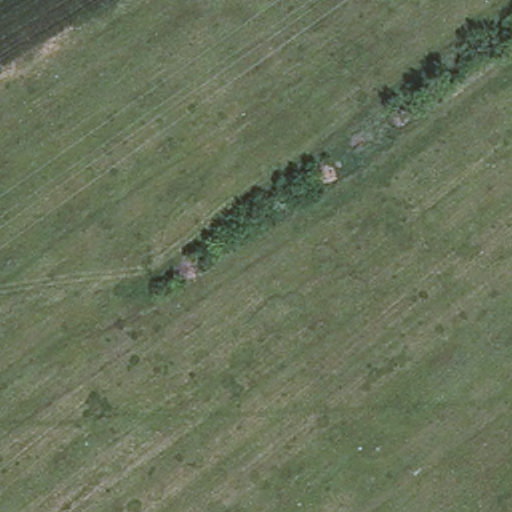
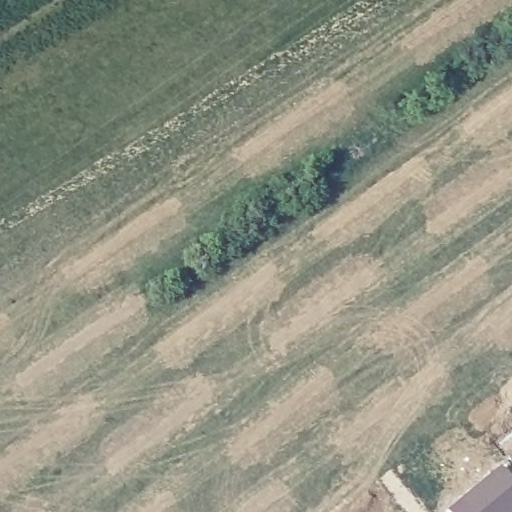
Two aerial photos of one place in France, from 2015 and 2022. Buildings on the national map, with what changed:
new [(502,464),(512,475),(512,512),(453,512),(448,507),(502,464)]

